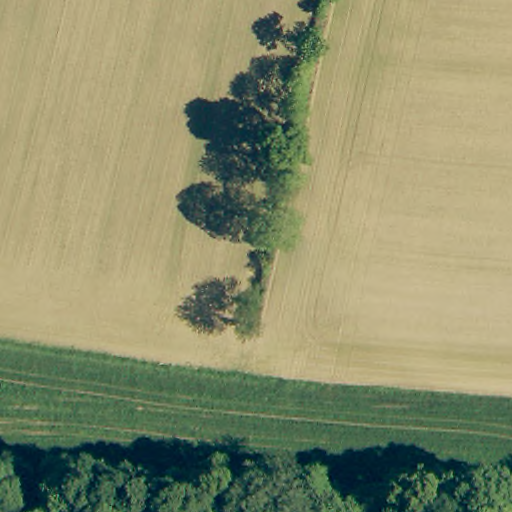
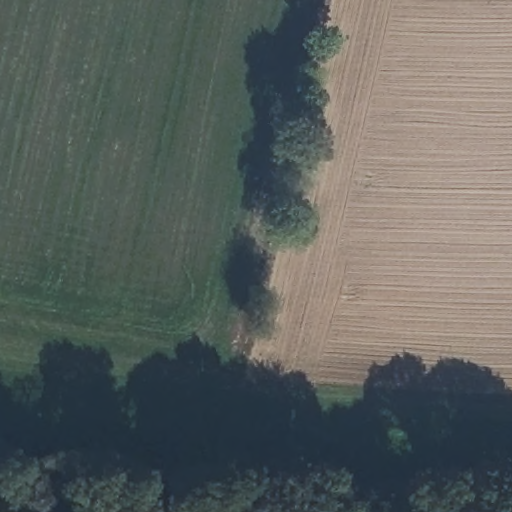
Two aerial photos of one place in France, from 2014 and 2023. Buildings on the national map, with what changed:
[]

